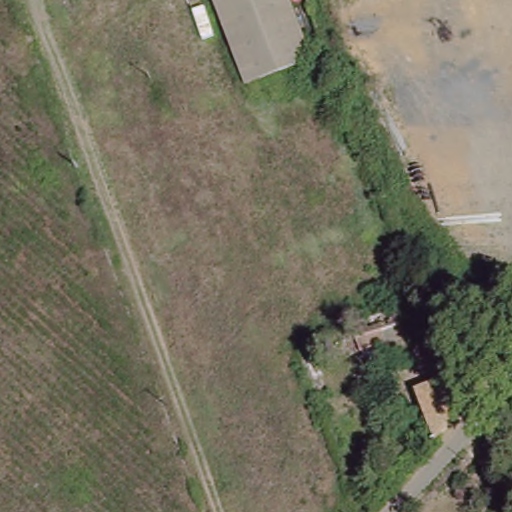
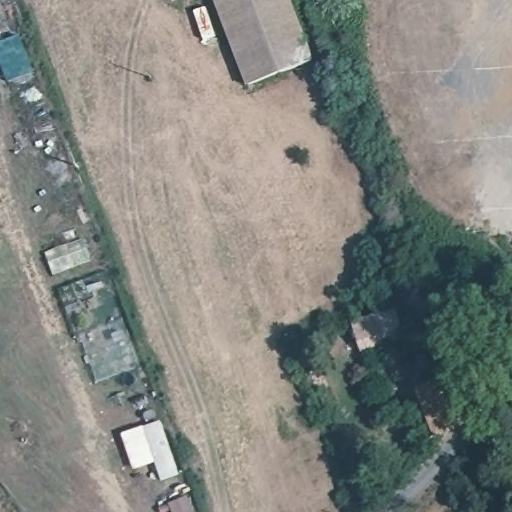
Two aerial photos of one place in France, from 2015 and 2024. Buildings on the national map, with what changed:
unchanged [(258,84),(228,0),(303,0),(324,60),(258,84)]
unchanged [(419,338),(361,362),(348,321),(409,299),(419,338)]
unchanged [(454,388),(463,416),(443,440),(426,404),(454,388)]
new [(161,419),(180,474),(161,481),(155,463),(133,470),(120,433),(161,419)]
new [(195,510),(192,512),(171,512),(171,511),(169,512),(160,512),(158,507),(189,494),(195,510)]

